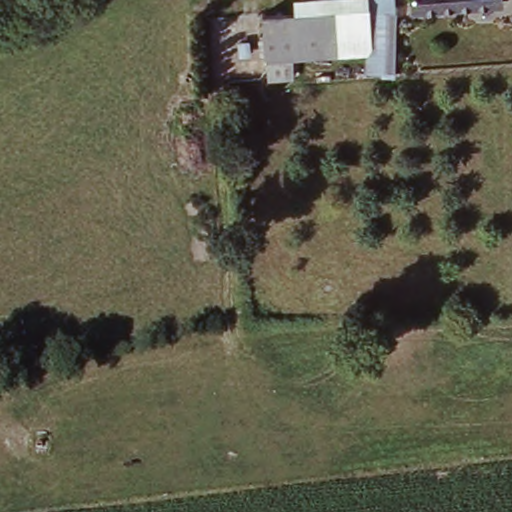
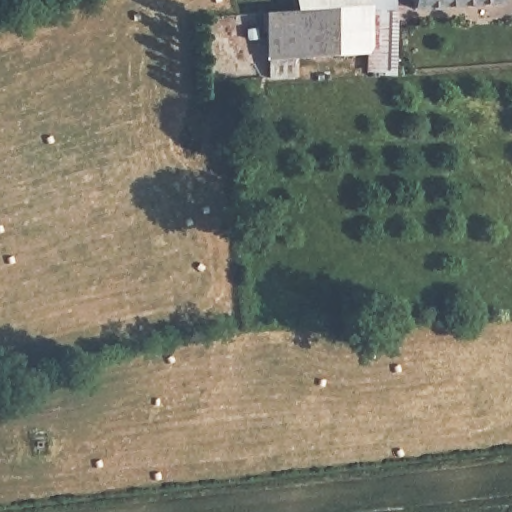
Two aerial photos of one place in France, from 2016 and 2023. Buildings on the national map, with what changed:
unchanged [(397,0),(398,14),(392,14),(397,66),(378,68),(372,4),(371,0),(397,0)]
unchanged [(501,0),(502,2),(416,7),(416,0),(501,0)]
unchanged [(370,4),(375,50),(341,54),(336,7),(370,4)]
unchanged [(266,14),(336,7),(341,54),(270,60),(266,14)]

